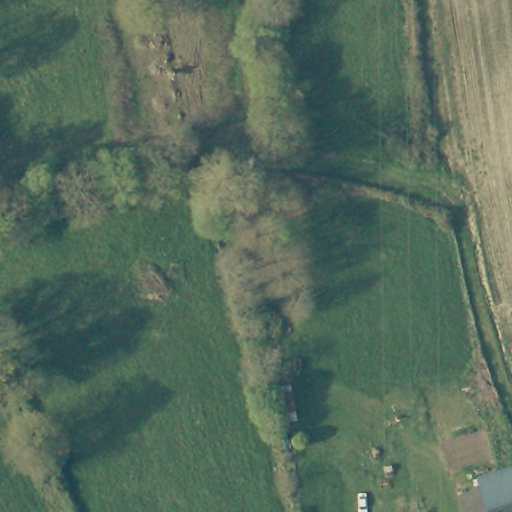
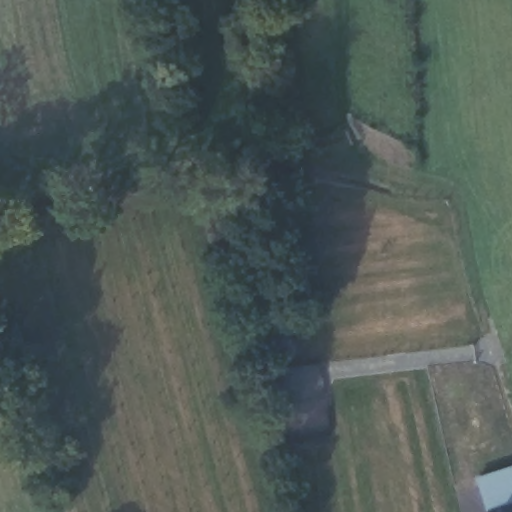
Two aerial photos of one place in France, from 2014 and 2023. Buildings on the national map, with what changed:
unchanged [(481,479),(512,469),(512,501),(491,507),(481,479)]
unchanged [(512,501),(512,512),(492,512),(491,507),(512,501)]

